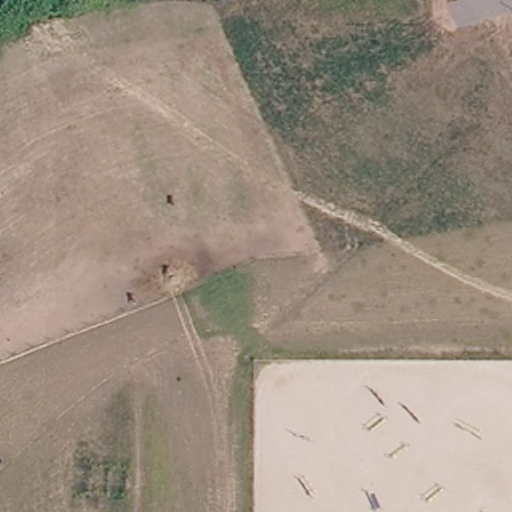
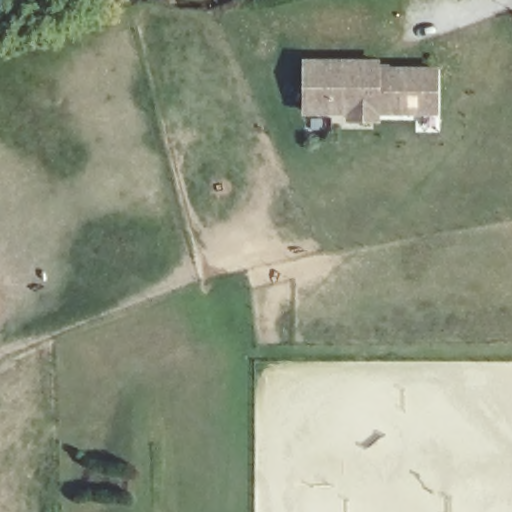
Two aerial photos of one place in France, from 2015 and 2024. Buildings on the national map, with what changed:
new [(381,117),(381,122),(346,122),(346,115),(303,115),(303,59),(381,59),(381,67),(440,66),(440,114),(381,117)]

